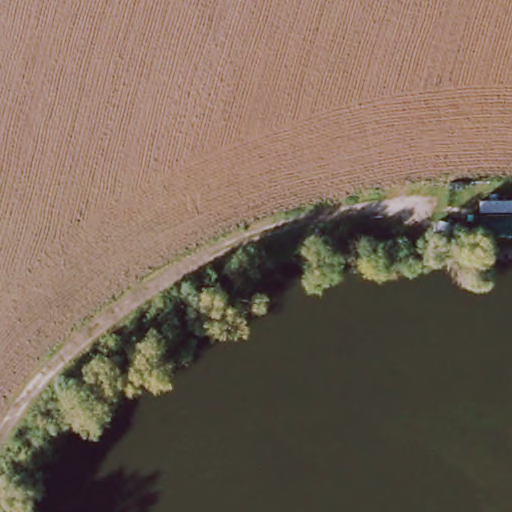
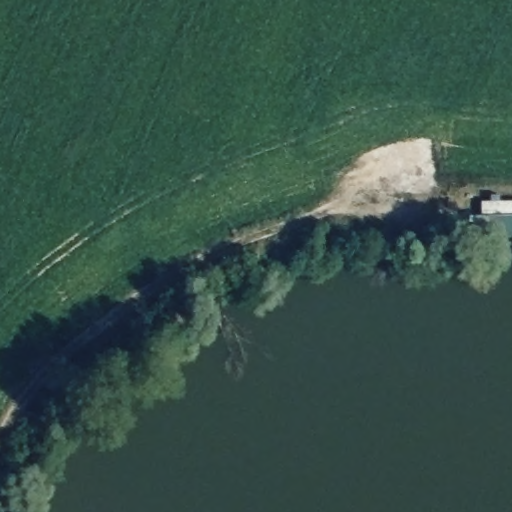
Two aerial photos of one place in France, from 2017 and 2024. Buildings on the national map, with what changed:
unchanged [(471,219),(512,219),(512,235),(471,235),(471,219)]

